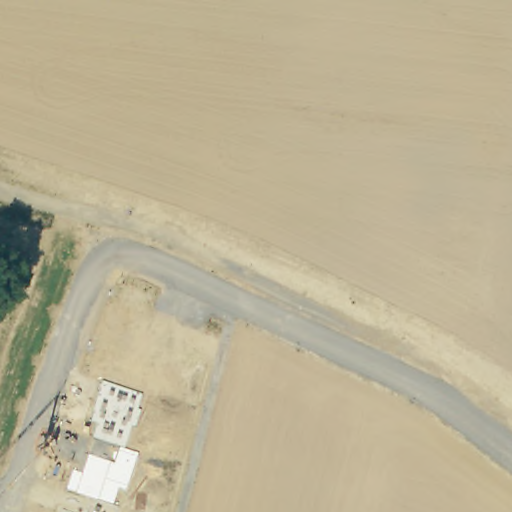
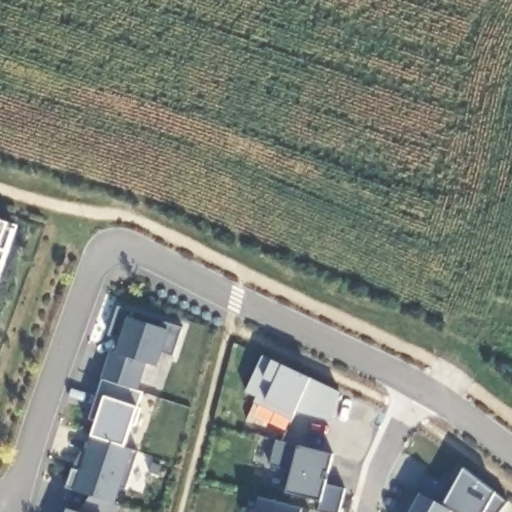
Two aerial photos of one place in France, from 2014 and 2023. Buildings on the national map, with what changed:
new [(0,247),(0,220),(9,222),(0,247)]
new [(91,496),(73,490),(66,488),(73,470),(79,471),(93,435),(97,421),(88,418),(111,351),(116,352),(120,340),(109,335),(119,307),(133,312),(129,317),(161,327),(164,320),(183,328),(173,357),(161,352),(156,366),(147,363),(138,391),(143,393),(137,409),(124,446),(133,451),(137,452),(125,488),(121,485),(115,503),(121,505),(118,512),(80,512),(91,496)]
new [(335,421),(294,415),(292,420),(254,403),(257,397),(247,392),(264,357),(272,361),(312,378),(342,393),(335,421)]
new [(327,483),(344,490),(338,512),(318,512),(321,501),(285,491),(292,469),(271,466),(277,440),(301,447),(333,456),(327,483)]
new [(502,512),(485,512),(457,512),(454,510),(453,512),(413,512),(423,495),(416,490),(424,476),(452,491),(456,485),(450,482),(459,464),(465,470),(494,495),(507,502),(502,512)]
new [(303,509),(309,510),(309,512),(257,512),(260,498),(303,509)]
new [(68,508),(80,512),(67,512),(68,508)]

